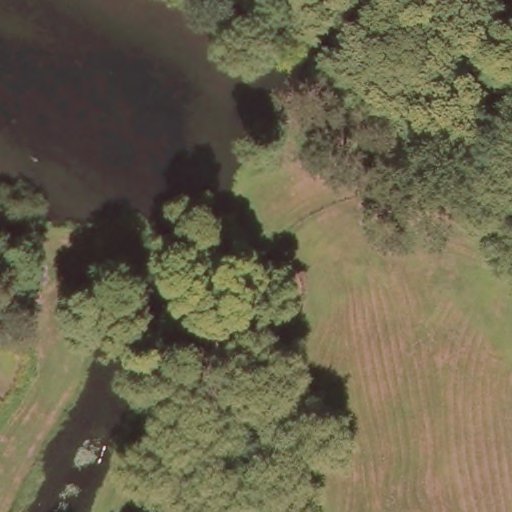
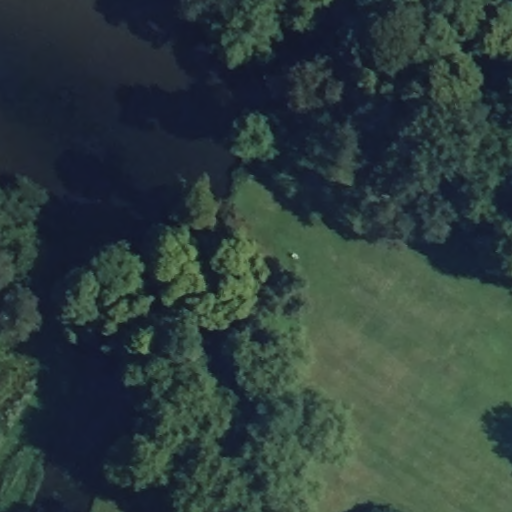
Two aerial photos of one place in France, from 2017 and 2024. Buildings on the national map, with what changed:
unchanged [(501,135),(471,103),(478,97),(508,129),(501,135)]

